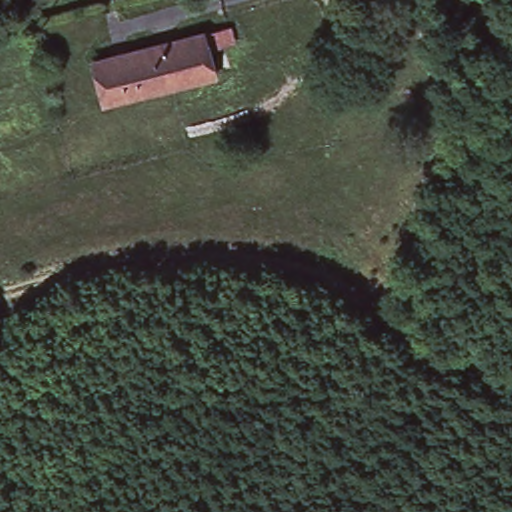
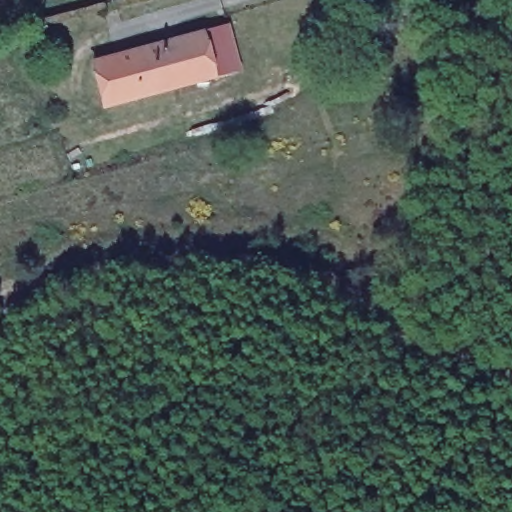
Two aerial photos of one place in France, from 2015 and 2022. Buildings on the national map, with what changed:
unchanged [(86,62),(201,30),(201,33),(232,27),(237,48),(208,54),(215,79),(100,110),(86,62)]

